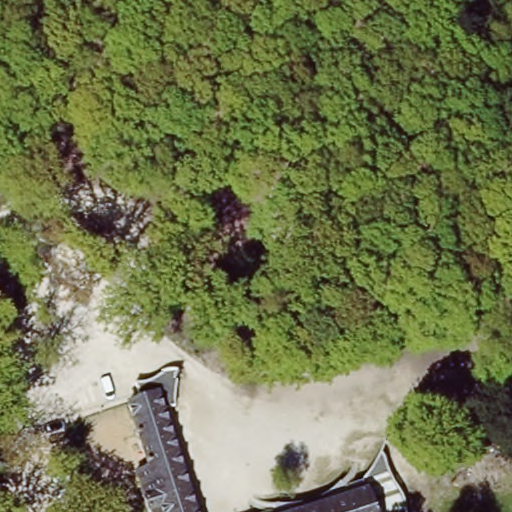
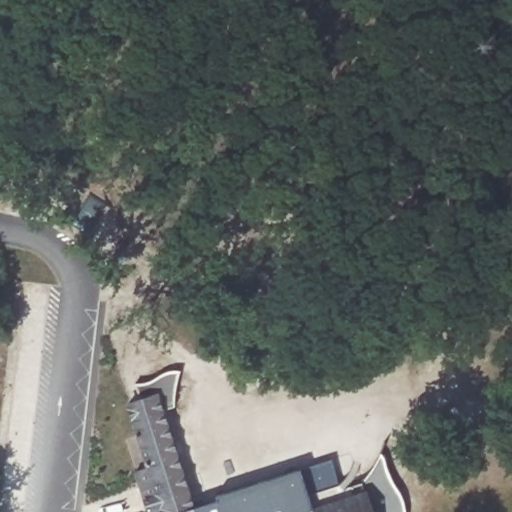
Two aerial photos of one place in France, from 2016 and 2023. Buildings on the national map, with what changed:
unchanged [(135,400),(131,384),(146,380),(181,360),(179,406),(166,409),(195,512),(150,512),(115,406),(135,400)]
unchanged [(282,512),(358,488),(383,446),(407,512),(282,512)]
new [(195,512),(193,506),(218,499),(216,494),(301,469),(331,459),(339,494),(281,512),(195,512)]

